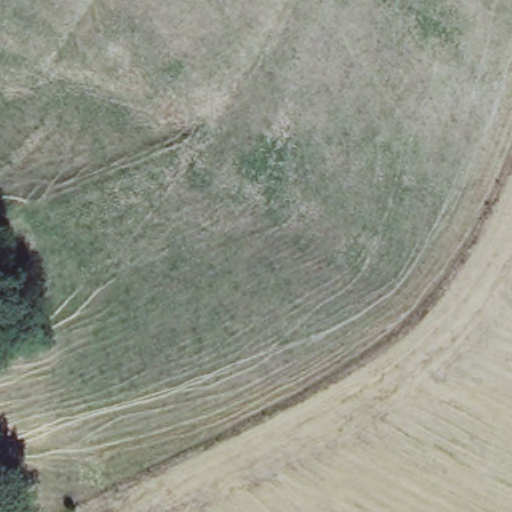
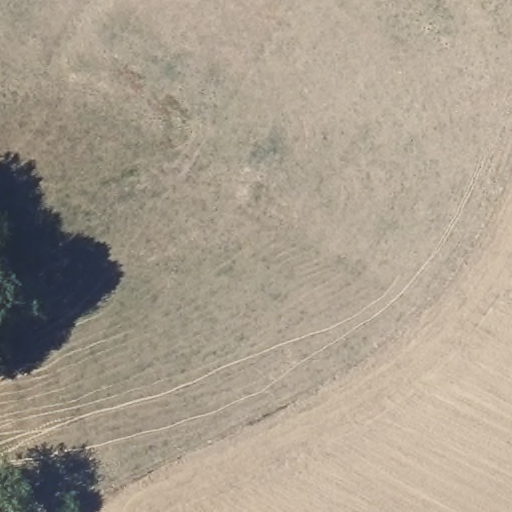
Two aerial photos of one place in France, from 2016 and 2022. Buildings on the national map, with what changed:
[]

